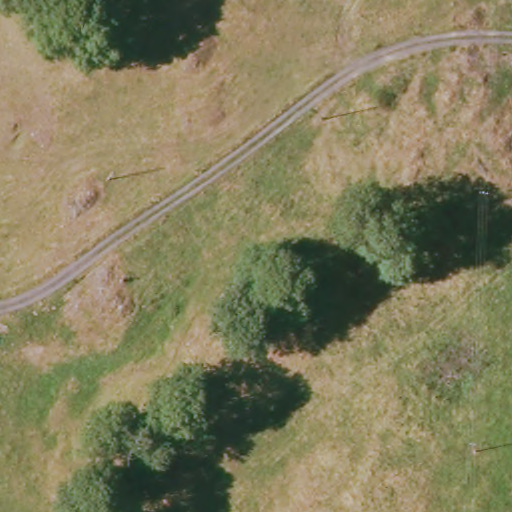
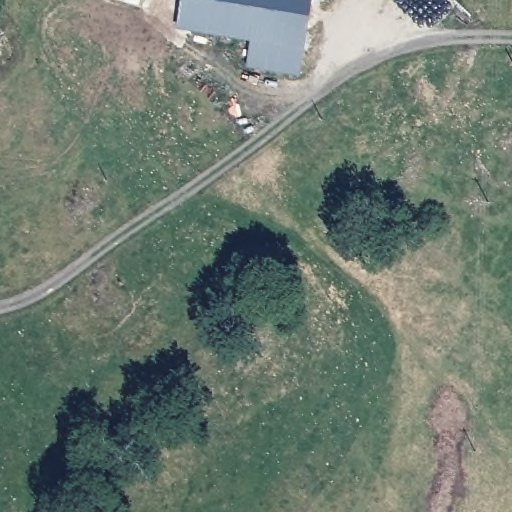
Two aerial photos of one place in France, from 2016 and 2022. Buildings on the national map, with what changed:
new [(251,39),(178,28),(182,0),(313,0),(300,76),(248,69),(251,39)]

